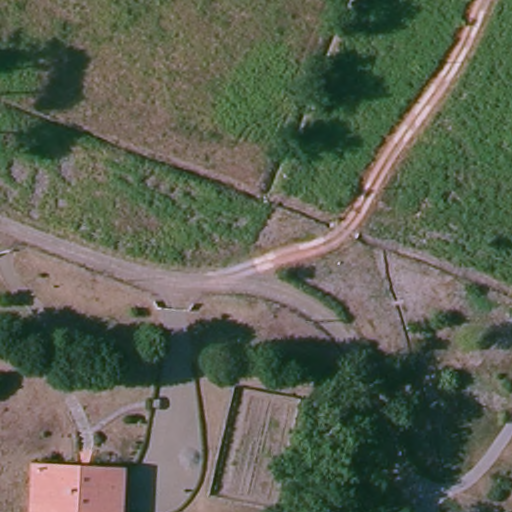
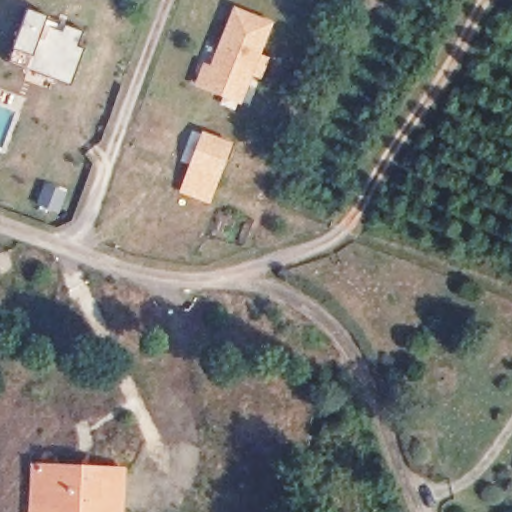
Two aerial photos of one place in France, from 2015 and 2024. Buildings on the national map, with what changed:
new [(211,64),(234,5),(275,23),(241,104),(194,86),(205,61),(211,64)]
new [(14,45),(29,8),(48,16),(45,23),(64,30),(67,24),(83,30),(79,45),(85,47),(71,82),(11,60),(14,45)]
new [(232,139),(220,178),(189,167),(203,129),(232,139)]
unchanged [(51,467),(56,468),(127,474),(123,512),(36,512),(40,466),(51,467)]

